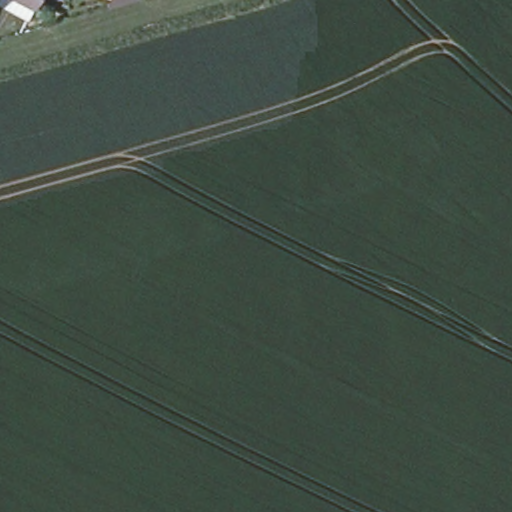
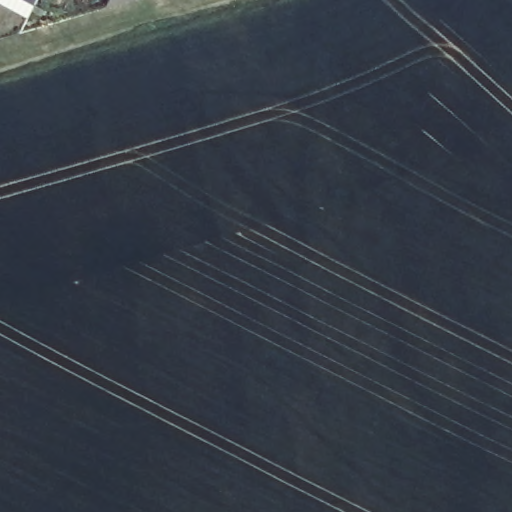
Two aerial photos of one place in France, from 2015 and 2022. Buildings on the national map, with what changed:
unchanged [(32,3),(26,0),(34,0),(32,3)]

